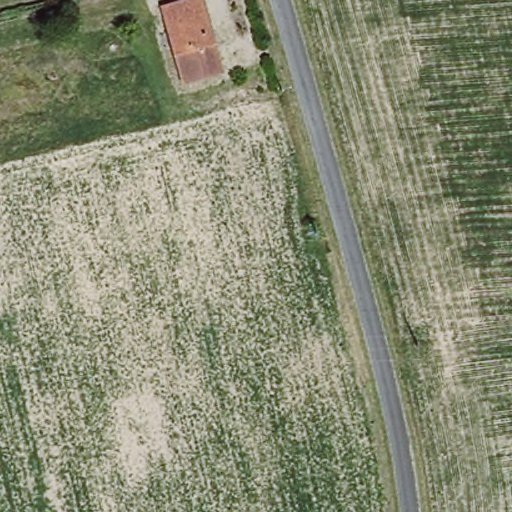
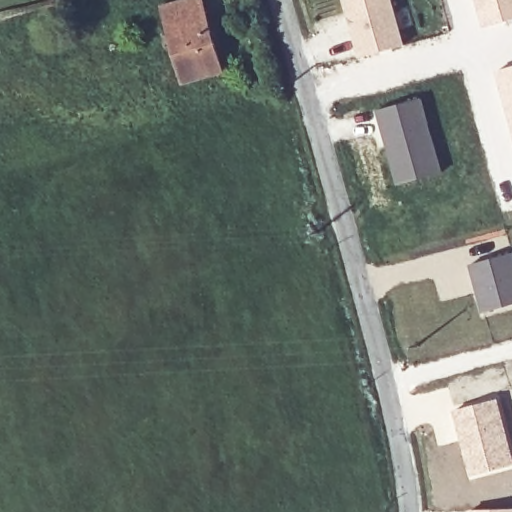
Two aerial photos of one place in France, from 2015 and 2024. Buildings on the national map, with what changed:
unchanged [(162,8),(189,0),(200,0),(221,71),(184,81),(162,8)]
new [(405,44),(363,55),(348,0),(392,0),(405,44)]
new [(512,19),(483,26),(476,0),(512,0),(512,19)]
new [(512,67),(512,125),(497,72),(512,67)]
new [(421,96),(442,173),(396,184),(374,109),(421,96)]
new [(512,303),(482,311),(468,263),(512,251),(512,303)]
new [(512,447),(512,464),(470,477),(452,409),(498,396),(512,447)]
new [(511,509),(511,512),(469,512),(469,511),(511,509)]

